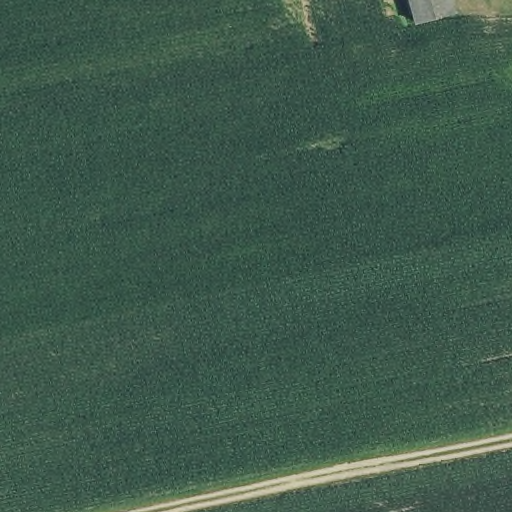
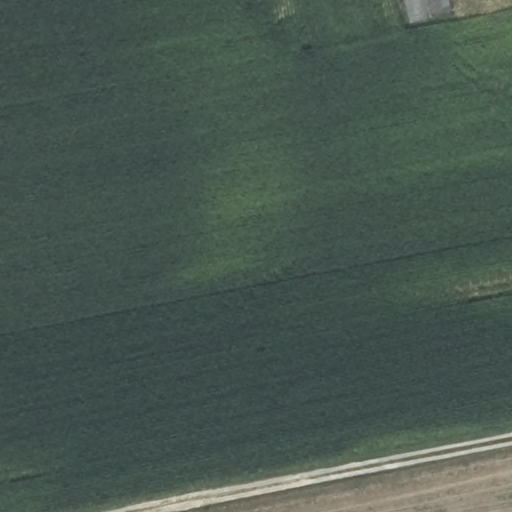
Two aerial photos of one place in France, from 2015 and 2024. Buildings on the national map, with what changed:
unchanged [(410,20),(404,0),(448,0),(451,9),(410,20)]

